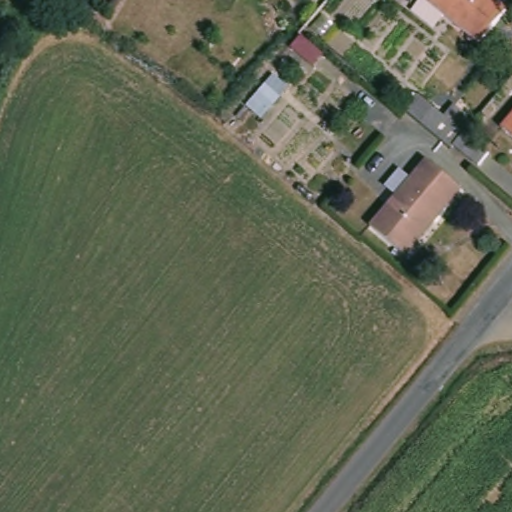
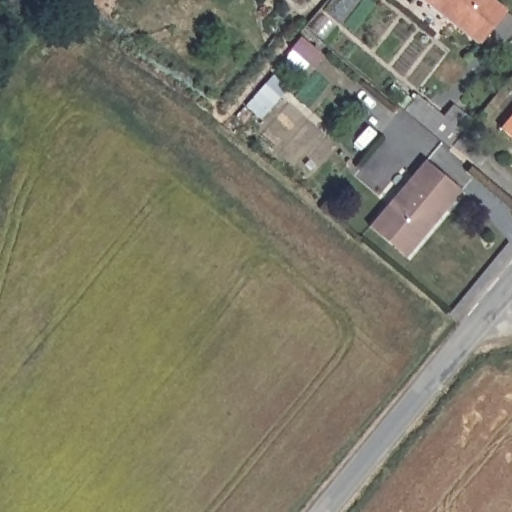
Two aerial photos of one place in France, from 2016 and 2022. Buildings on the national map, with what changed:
unchanged [(505,10),(480,44),(426,0),(493,0),(505,10)]
unchanged [(414,97),(460,133),(450,147),(404,110),(414,97)]
unchanged [(507,130),(512,124),(512,134),(507,130)]
unchanged [(465,137),(487,156),(478,165),(457,147),(465,137)]
unchanged [(460,189),(434,223),(430,219),(401,254),(369,228),(425,160),(460,189)]

